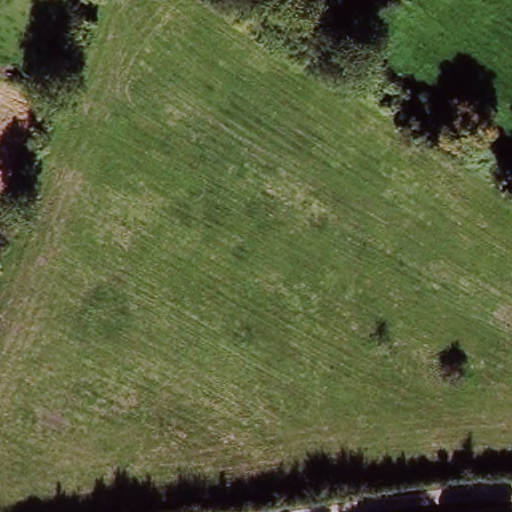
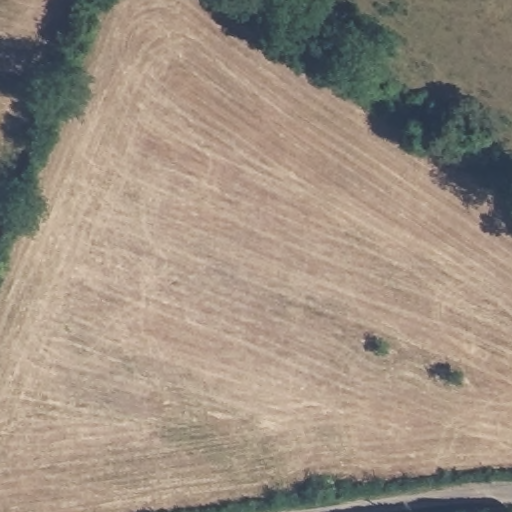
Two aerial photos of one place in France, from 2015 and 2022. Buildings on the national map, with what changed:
[]

